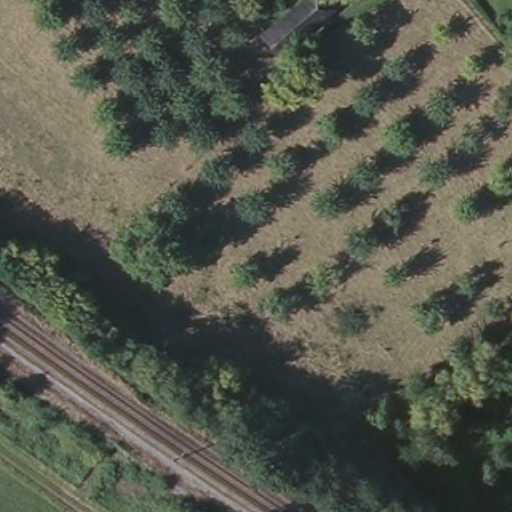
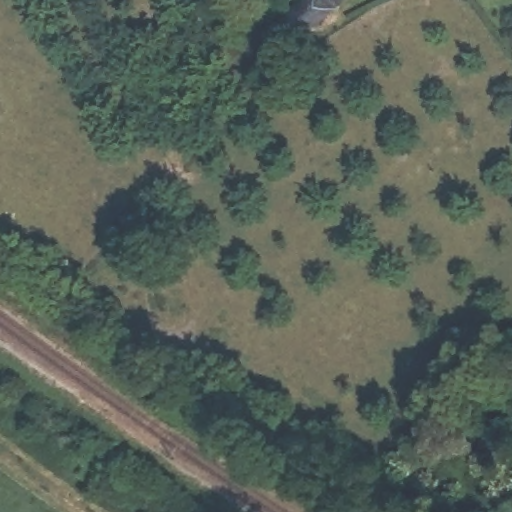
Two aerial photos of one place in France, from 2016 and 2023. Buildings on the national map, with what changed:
unchanged [(266,34),(307,0),(330,0),(336,8),(281,53),(266,34)]

